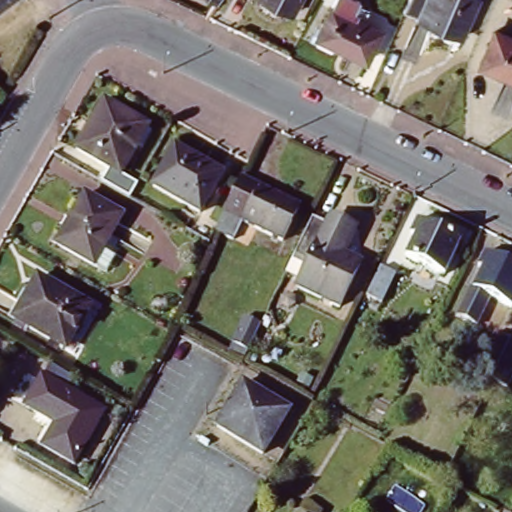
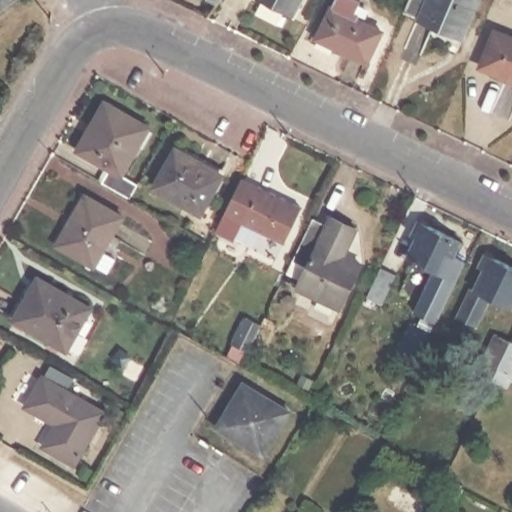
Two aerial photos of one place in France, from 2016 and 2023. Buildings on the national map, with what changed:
unchanged [(0,13),(0,0),(17,0),(0,13)]
unchanged [(215,5),(208,0),(219,0),(215,5)]
unchanged [(293,16),(260,0),(300,0),(293,16)]
unchanged [(352,17),(380,31),(364,63),(315,38),(334,0),(358,0),(360,1),(352,17)]
unchanged [(420,22),(420,20),(405,15),(412,0),(477,0),(465,37),(420,22)]
unchanged [(492,31),(512,39),(512,80),(478,66),(492,31)]
unchanged [(128,199),(102,184),(109,173),(76,154),(104,105),(148,130),(121,177),(135,185),(128,199)]
unchanged [(179,149),(225,175),(203,214),(157,188),(179,149)]
unchanged [(241,227),(233,244),(215,235),(239,185),(257,194),(258,192),(298,212),(281,246),(241,227)]
unchanged [(74,218),(88,196),(123,217),(96,266),(63,248),(79,222),(74,218)]
unchanged [(411,257),(421,237),(415,234),(422,221),(465,243),(449,276),(411,257)]
unchanged [(346,261),(364,270),(342,314),(299,292),(309,274),(295,266),(316,223),(329,229),(333,222),(358,235),(349,253),(346,261)]
unchanged [(477,289),(487,270),(482,268),(489,254),(512,266),(512,307),(493,297),(479,324),(459,314),(473,287),(477,289)]
unchanged [(397,279),(382,308),(368,301),(383,272),(397,279)]
unchanged [(92,311),(69,352),(14,320),(37,279),(92,311)]
unchanged [(249,321),(265,328),(252,355),(236,347),(249,321)]
unchanged [(475,377),(494,339),(509,346),(512,348),(512,378),(497,371),(490,385),(475,377)]
unchanged [(48,447),(60,425),(29,407),(47,377),(108,413),(78,464),(48,447)]
unchanged [(245,387),(291,413),(265,458),(219,431),(245,387)]

